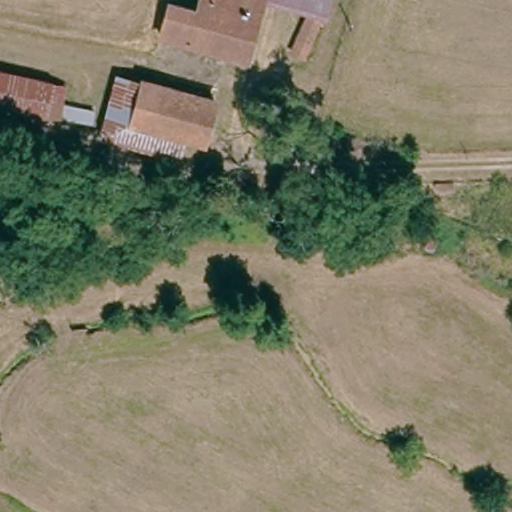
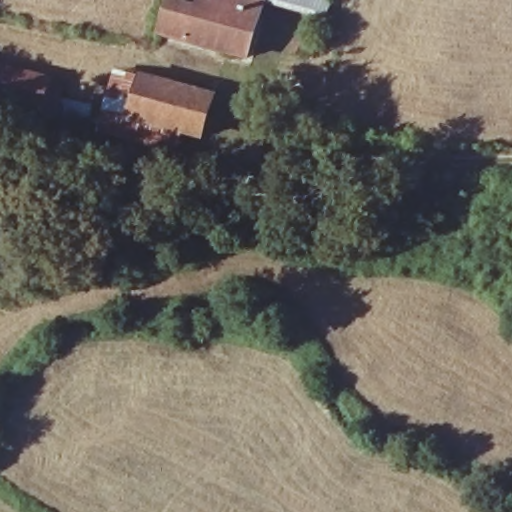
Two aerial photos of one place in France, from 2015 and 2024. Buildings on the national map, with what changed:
unchanged [(259,3),(242,60),(184,42),(183,44),(160,37),(169,3),(192,9),(195,0),(327,0),(324,14),(322,22),(318,21),(307,59),(295,55),(307,18),(259,3)]
unchanged [(57,98),(93,106),(89,126),(0,108),(0,66),(62,80),(57,98)]
unchanged [(128,121),(109,116),(120,71),(140,78),(172,86),(212,98),(207,118),(201,144),(128,121)]
unchanged [(342,134),(341,146),(260,128),(263,115),(267,116),(342,134)]

